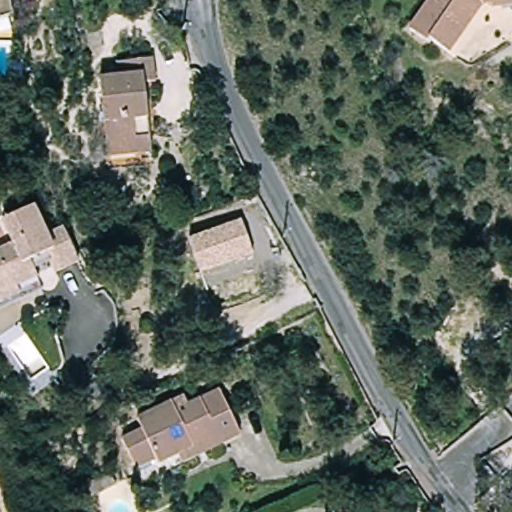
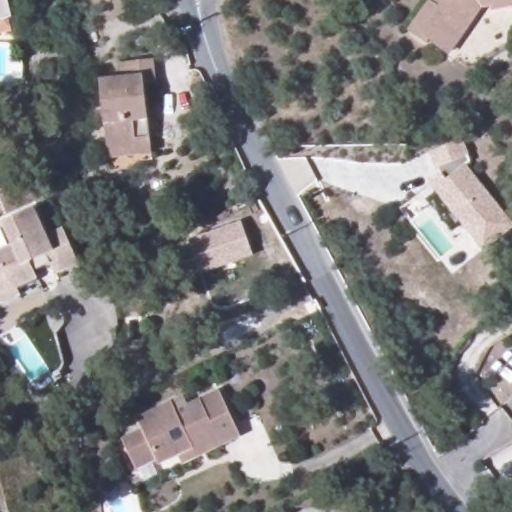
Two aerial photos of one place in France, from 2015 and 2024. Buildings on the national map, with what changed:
unchanged [(0,23),(0,0),(9,0),(13,20),(0,23)]
unchanged [(512,0),(512,4),(476,11),(447,53),(426,40),(424,42),(404,29),(424,0),(512,0)]
unchanged [(123,86),(120,73),(155,68),(158,94),(146,95),(156,154),(114,160),(103,89),(123,86)]
new [(484,252),(427,186),(439,176),(431,153),(462,141),(469,162),(466,165),(512,223),(512,228),(484,252)]
unchanged [(0,247),(9,242),(0,222),(31,207),(44,237),(60,229),(75,263),(51,274),(43,256),(28,263),(34,278),(18,286),(21,292),(0,301),(0,247)]
unchanged [(189,239),(239,222),(250,258),(202,276),(189,239)]
unchanged [(174,456),(153,466),(151,461),(134,468),(121,440),(140,431),(135,421),(161,409),(171,405),(178,422),(187,417),(184,412),(218,397),(240,446),(219,455),(181,472),(174,456)]

